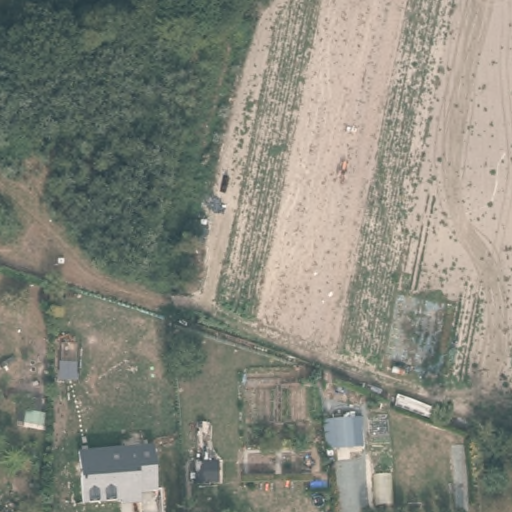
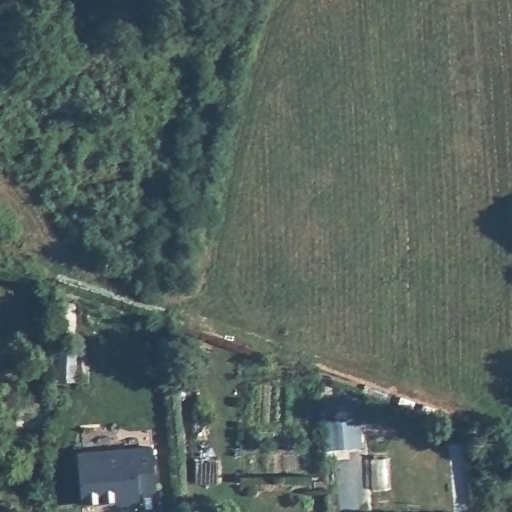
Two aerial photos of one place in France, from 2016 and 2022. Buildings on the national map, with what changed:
unchanged [(351,418),(353,447),(337,448),(335,419),(351,418)]
unchanged [(157,491),(139,492),(140,503),(120,505),(119,500),(83,503),(79,452),(151,444),(157,491)]

